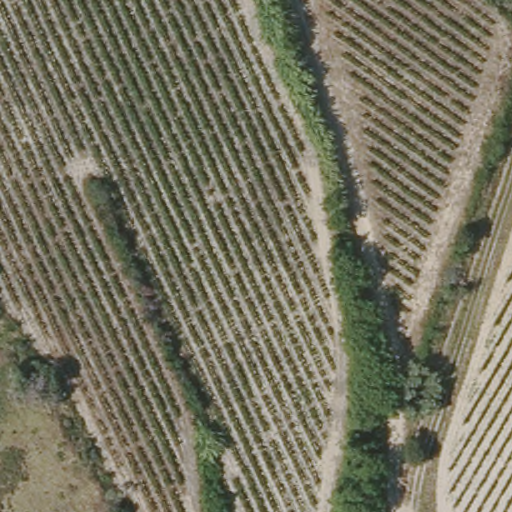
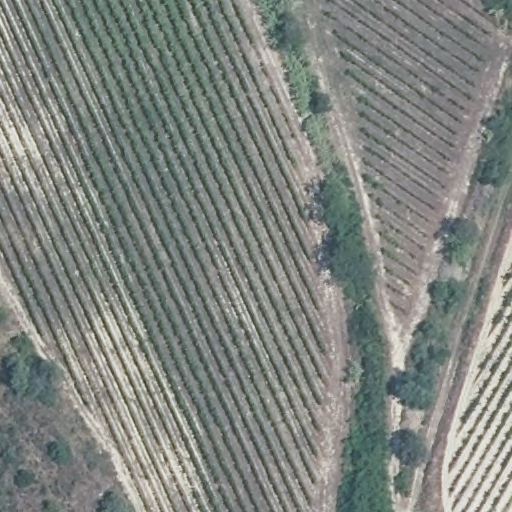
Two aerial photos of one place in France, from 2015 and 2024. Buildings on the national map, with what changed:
[]

